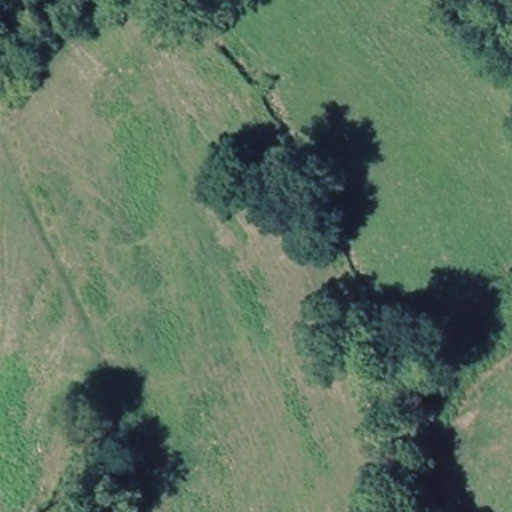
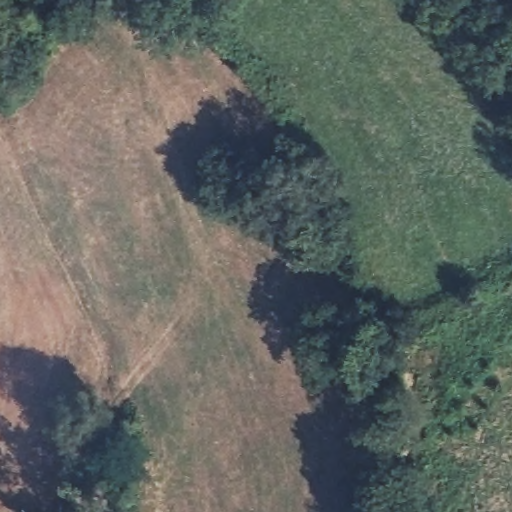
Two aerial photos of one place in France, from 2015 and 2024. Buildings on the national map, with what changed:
[]

